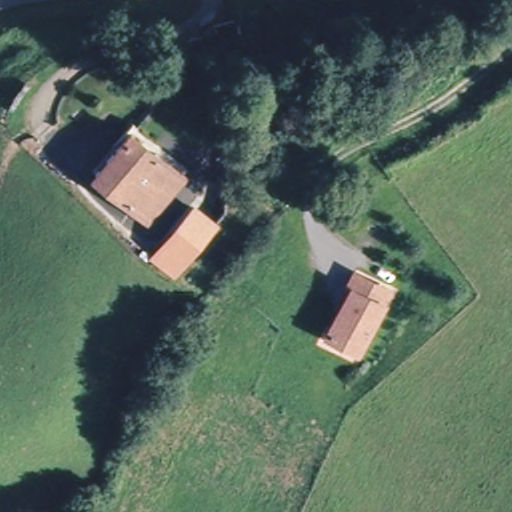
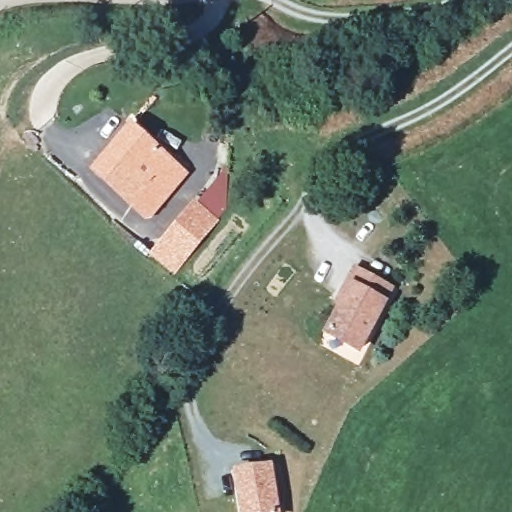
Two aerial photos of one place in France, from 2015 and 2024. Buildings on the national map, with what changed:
unchanged [(145,214),(131,204),(89,171),(125,129),(166,160),(179,170),(145,214)]
unchanged [(219,221),(175,275),(150,252),(193,201),(219,221)]
unchanged [(387,291),(357,351),(326,335),(340,307),(335,305),(343,287),(350,273),(387,291)]
new [(271,460),(279,512),(238,512),(231,467),(271,460)]

